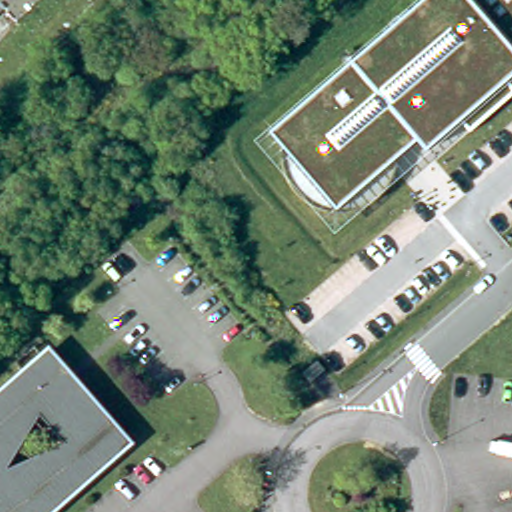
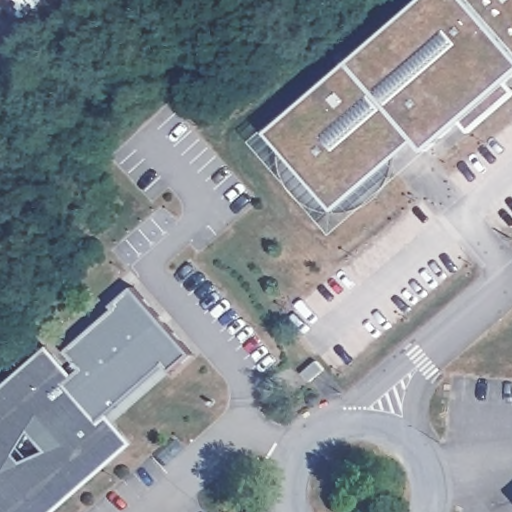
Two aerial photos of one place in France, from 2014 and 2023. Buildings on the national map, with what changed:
unchanged [(512,87),(512,96),(470,134),(461,123),(426,151),(419,143),(396,163),(390,184),(377,199),(362,207),(348,211),(327,208),(314,202),(302,194),(292,179),(286,165),(285,150),(269,131),(421,0),(512,0),(512,80),(508,83),(512,87)]
new [(82,369),(67,350),(117,309),(115,305),(135,289),(190,354),(173,371),(166,363),(103,419),(69,380),(82,369)]
unchanged [(106,461),(103,458),(40,512),(0,512),(0,409),(35,379),(21,363),(41,348),(53,362),(125,444),(106,461)]

